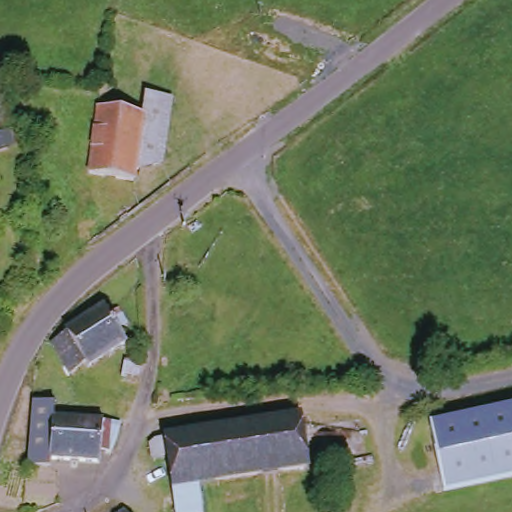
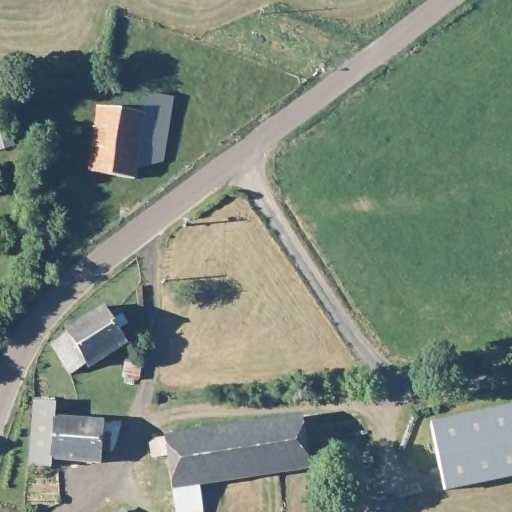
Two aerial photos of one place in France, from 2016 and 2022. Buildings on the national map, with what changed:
unchanged [(151,99),(177,102),(168,165),(141,172),(149,118),(151,99)]
unchanged [(141,172),(139,182),(94,175),(103,111),(149,118),(141,172)]
unchanged [(95,365),(79,375),(60,343),(77,333),(75,330),(113,306),(118,315),(128,309),(137,323),(128,329),(136,343),(98,367),(95,365)]
unchanged [(151,362),(148,380),(133,376),(136,360),(151,362)]
unchanged [(114,458),(105,457),(105,467),(56,465),(55,471),(34,470),(39,405),(59,407),(58,422),(125,427),(120,446),(114,458)]
unchanged [(449,495),(435,430),(512,413),(512,482),(449,495)]
unchanged [(153,462),(151,448),(156,444),(166,442),(300,422),(308,472),(198,488),(202,512),(176,512),(168,460),(153,462)]

